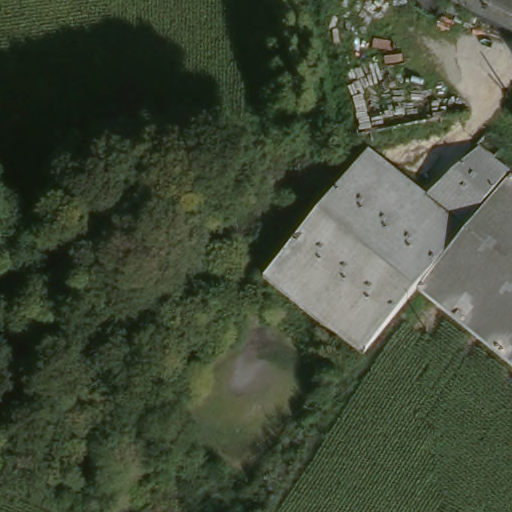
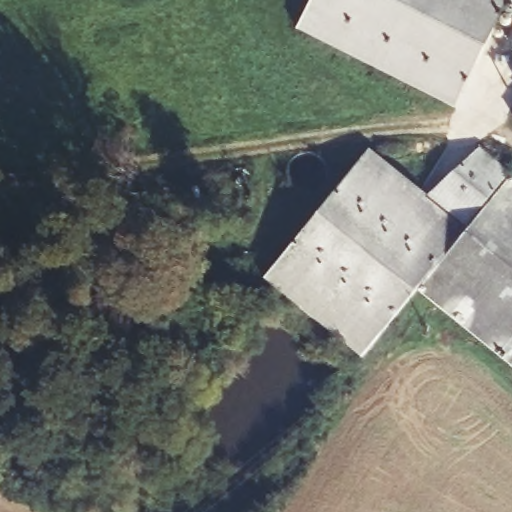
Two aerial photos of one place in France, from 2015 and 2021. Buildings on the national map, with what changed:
new [(312,0),(508,0),(455,108),(297,29),(312,0)]
demolished [(459,0),(512,0),(512,27),(459,0)]
unchanged [(435,191),(487,149),(512,169),(512,361),(429,293),(371,362),(268,277),(378,145),(435,191)]

